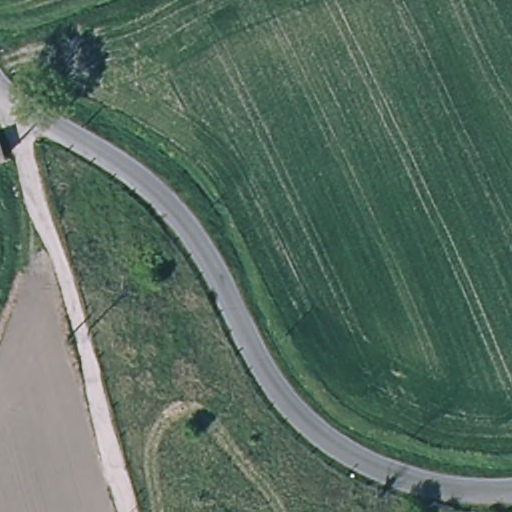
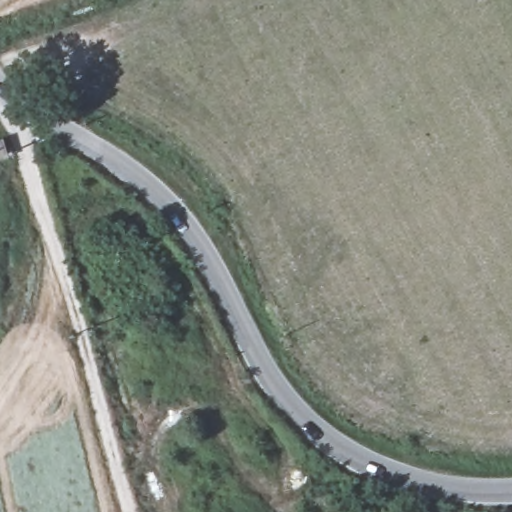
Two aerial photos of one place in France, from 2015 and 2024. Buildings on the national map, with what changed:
unchanged [(10,157),(0,161),(0,144),(4,142),(10,157)]

